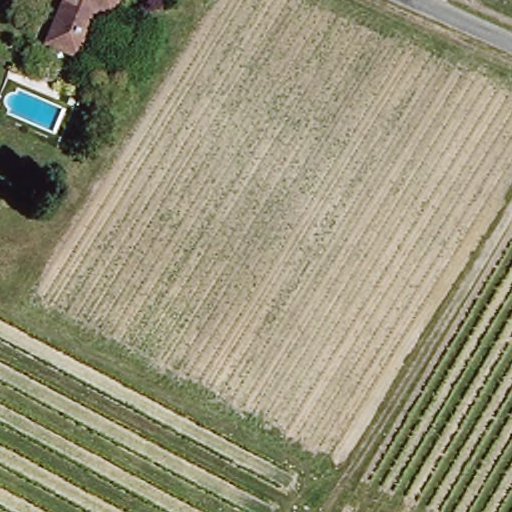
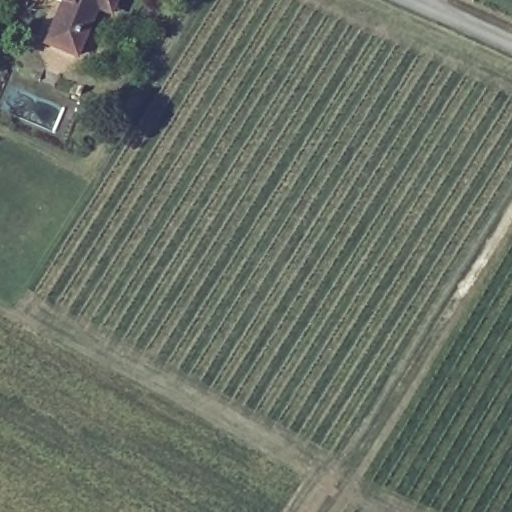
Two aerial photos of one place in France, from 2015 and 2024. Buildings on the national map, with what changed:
unchanged [(57,5),(59,0),(122,0),(112,20),(100,13),(75,62),(47,50),(67,7),(57,5)]

